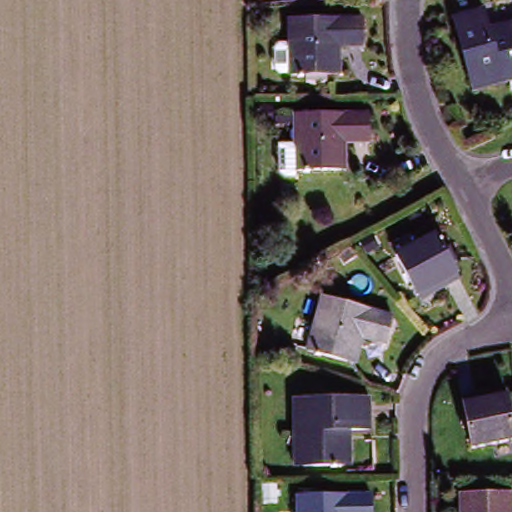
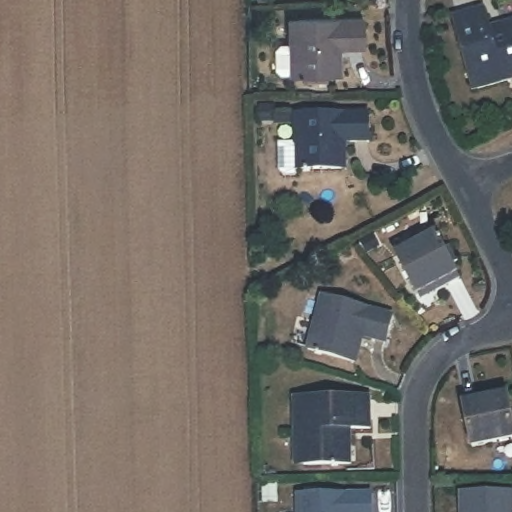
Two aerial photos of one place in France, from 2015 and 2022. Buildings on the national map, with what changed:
unchanged [(506,72),(508,80),(472,90),(451,18),(482,10),(489,30),(512,23),(512,71),(506,72)]
unchanged [(330,72),(330,77),(309,78),(309,72),(294,72),(294,71),(284,71),(280,66),(280,45),(284,41),(294,41),(294,16),(364,15),(365,46),(337,46),(337,71),(330,72)]
unchanged [(337,144),(337,167),(296,167),(296,116),(368,114),(368,143),(337,144)]
unchanged [(444,286),(441,281),(415,296),(393,257),(433,235),(441,249),(447,246),(456,262),(450,265),(457,278),(444,286)]
unchanged [(310,350),(323,297),(396,315),(389,343),(360,337),(354,362),(310,350)]
unchanged [(471,442),(461,393),(475,390),(477,398),(506,392),(512,417),(512,434),(471,442)]
unchanged [(300,468),(299,435),(291,435),(290,399),(365,398),(366,430),(347,430),(348,467),(300,468)]
unchanged [(512,489),(512,512),(457,512),(457,489),(512,489)]
unchanged [(372,494),(372,512),(301,512),(301,496),(372,494)]

